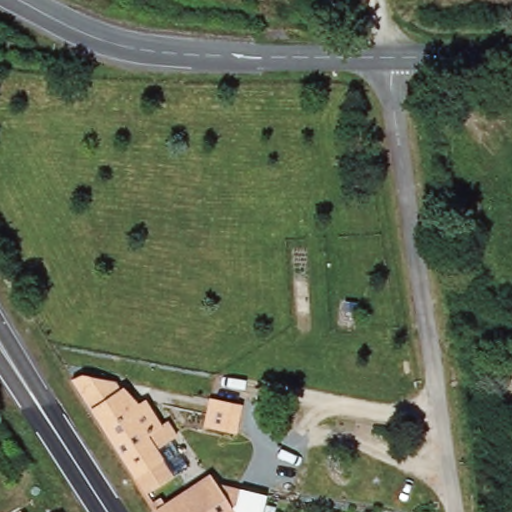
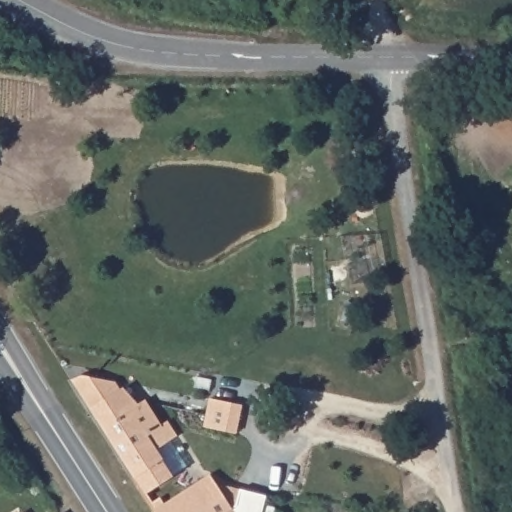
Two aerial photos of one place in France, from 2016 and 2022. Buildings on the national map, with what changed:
unchanged [(72,380),(82,376),(114,382),(120,391),(121,389),(137,405),(145,401),(161,427),(169,423),(177,437),(155,451),(162,461),(135,478),(72,380)]
unchanged [(210,400),(225,403),(240,407),(239,413),(235,432),(205,427),(209,407),(210,400)]
unchanged [(135,478),(162,461),(172,478),(152,492),(162,507),(210,477),(220,488),(266,497),(265,512),(156,512),(135,478)]

